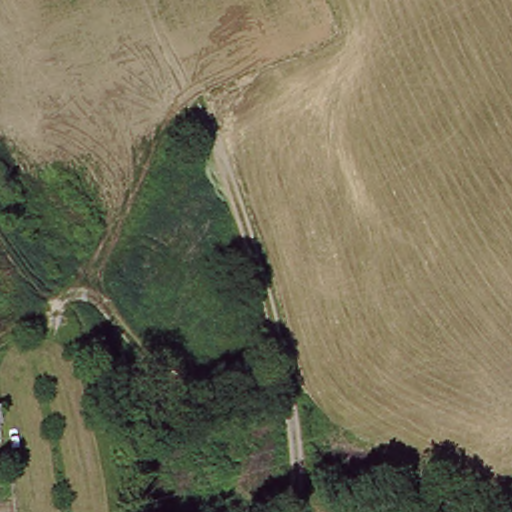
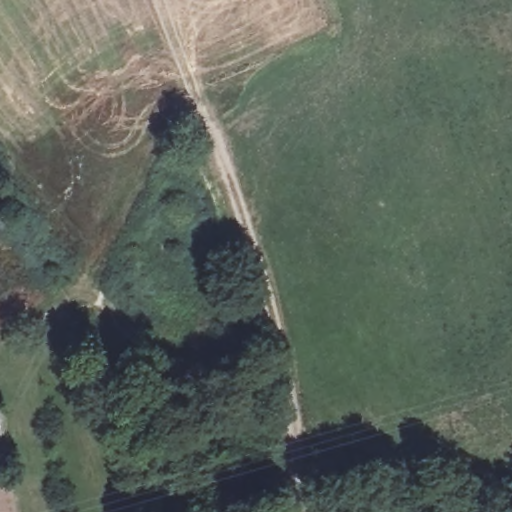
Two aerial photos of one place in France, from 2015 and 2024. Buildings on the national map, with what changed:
unchanged [(0,422),(0,404),(9,403),(10,422),(0,422)]

